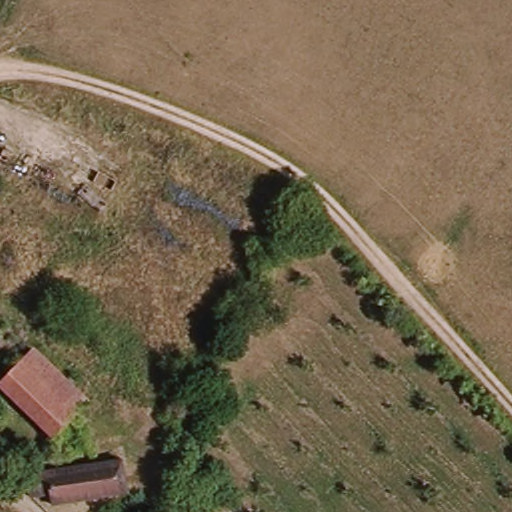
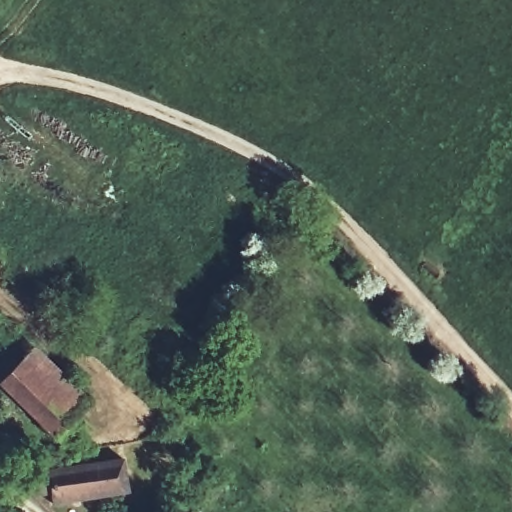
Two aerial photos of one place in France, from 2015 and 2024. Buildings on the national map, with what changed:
unchanged [(0,383),(0,381),(31,349),(34,352),(85,402),(74,414),(54,435),(0,383)]
unchanged [(27,498),(25,479),(25,474),(97,465),(123,462),(124,462),(127,494),(48,505),(47,496),(27,498)]
unchanged [(187,512),(189,510),(192,512),(187,512)]

